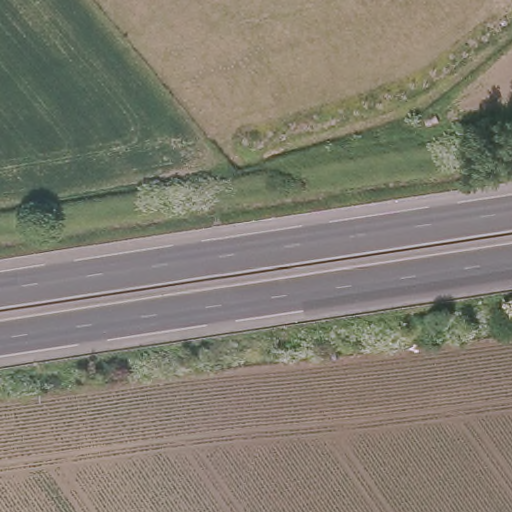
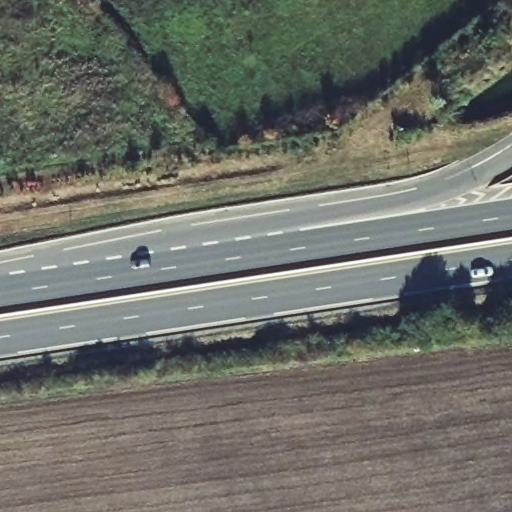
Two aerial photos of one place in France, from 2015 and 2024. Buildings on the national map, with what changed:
[]

